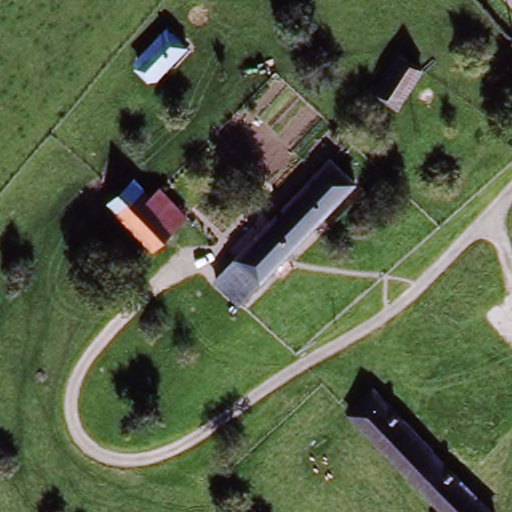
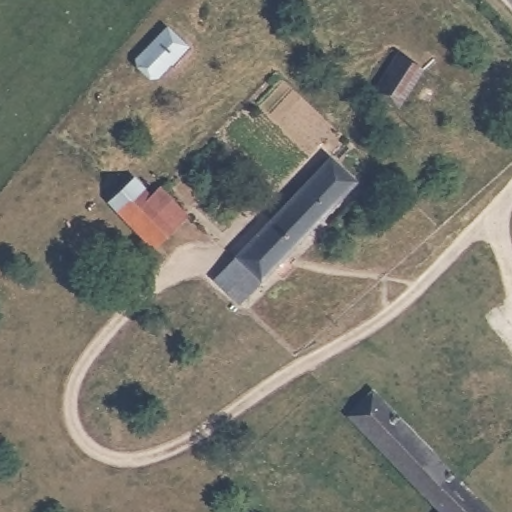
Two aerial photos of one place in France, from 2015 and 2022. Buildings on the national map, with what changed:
unchanged [(134,65),(163,35),(183,54),(155,84),(134,65)]
unchanged [(376,90),(382,81),(401,53),(425,70),(407,98),(401,106),(376,90)]
unchanged [(216,281),(238,257),(331,157),(356,180),(241,305),(216,281)]
unchanged [(181,219),(151,250),(109,210),(131,187),(147,202),(156,194),(181,219)]
unchanged [(373,395),(488,512),(442,512),(435,505),(349,418),(373,395)]

